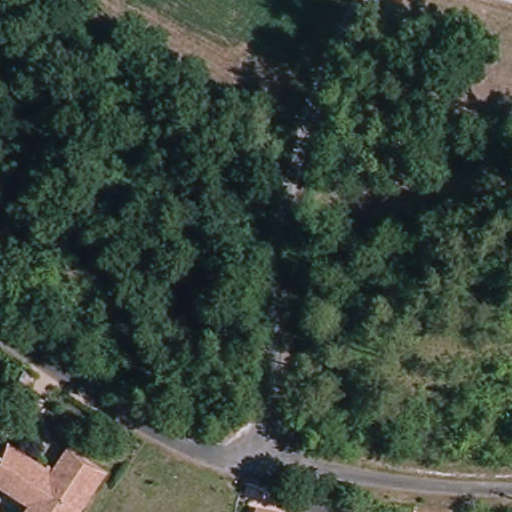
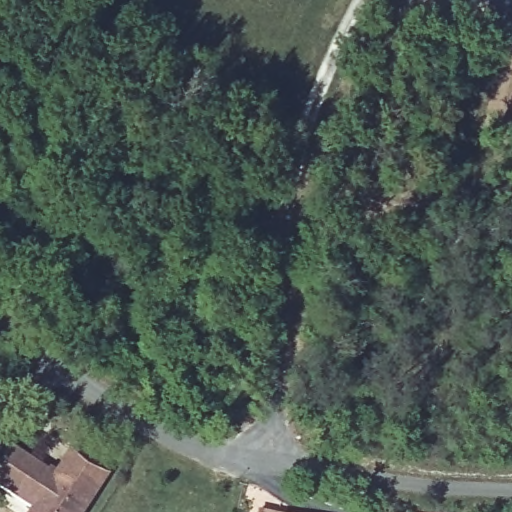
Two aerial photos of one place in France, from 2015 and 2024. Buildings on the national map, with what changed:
unchanged [(0,479),(0,475),(20,447),(63,477),(79,455),(114,478),(91,512),(41,512),(43,509),(0,479)]

